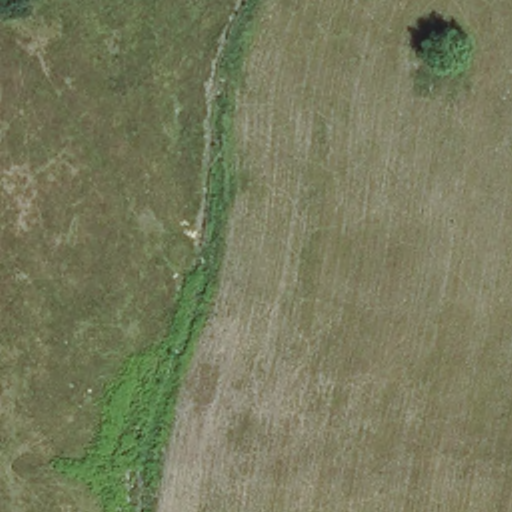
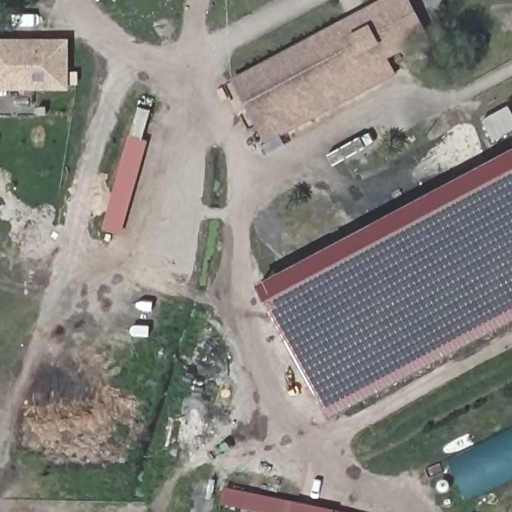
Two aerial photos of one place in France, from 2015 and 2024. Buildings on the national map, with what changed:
new [(410,0),(430,35),(388,59),(395,74),(267,143),(233,77),(381,0),(410,0)]
new [(70,38),(70,89),(0,88),(0,38),(70,38)]
new [(512,112),(512,130),(493,140),(483,119),(509,106),(512,112)]
new [(151,110),(143,139),(148,140),(122,234),(104,229),(138,107),(151,110)]
new [(257,283),(512,148),(512,321),(330,418),(257,283)]
new [(512,480),(470,500),(450,463),(512,433),(512,480)]
new [(222,507),(225,490),(293,503),(292,507),(322,512),(250,512),(222,507)]

